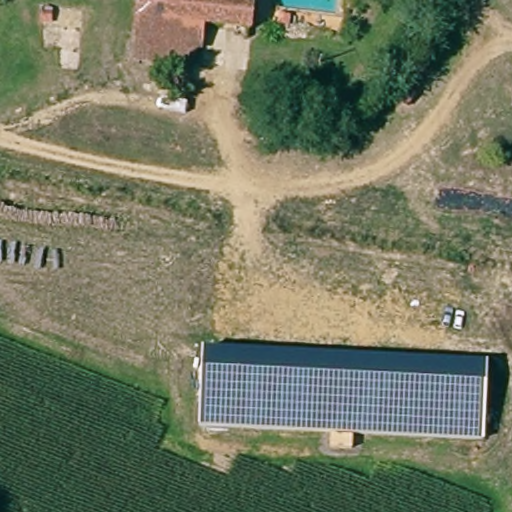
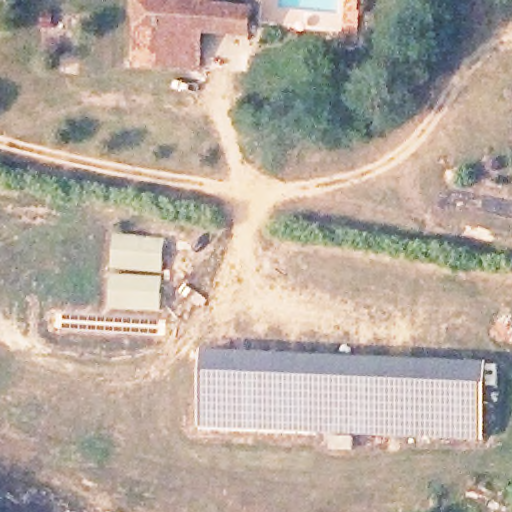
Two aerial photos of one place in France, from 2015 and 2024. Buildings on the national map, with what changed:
unchanged [(202,27),(139,24),(141,0),(236,0),(251,1),(249,31),(202,27)]
unchanged [(92,36),(78,31),(86,10),(100,16),(92,36)]
unchanged [(201,49),(137,45),(139,24),(202,27),(201,49)]
new [(113,233),(164,238),(162,275),(142,275),(142,272),(109,267),(113,233)]
new [(109,275),(142,275),(162,275),(159,312),(107,307),(109,275)]
unchanged [(488,362),(485,442),(201,428),(204,349),(488,362)]

